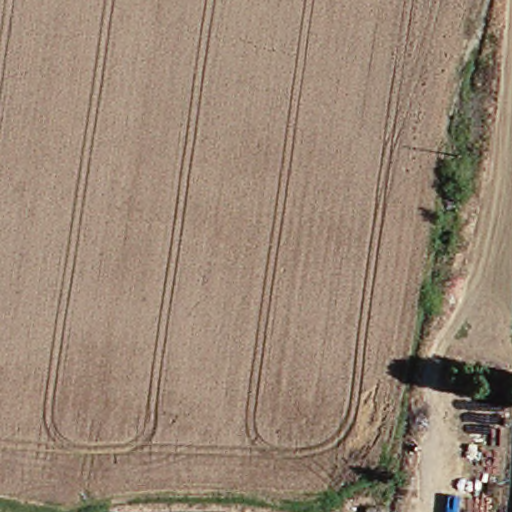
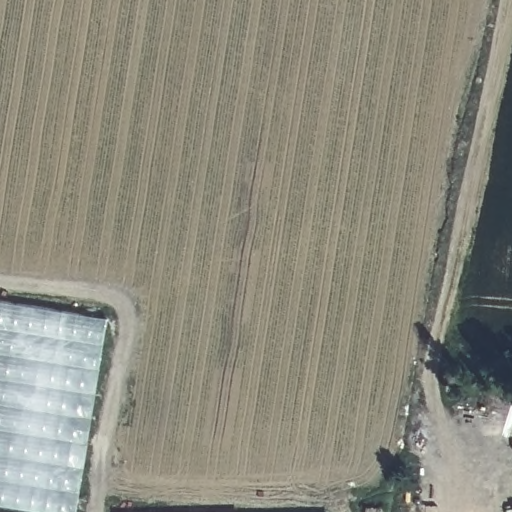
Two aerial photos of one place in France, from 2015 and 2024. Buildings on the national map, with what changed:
new [(0,303),(106,320),(79,512),(42,512),(0,506),(0,303)]

